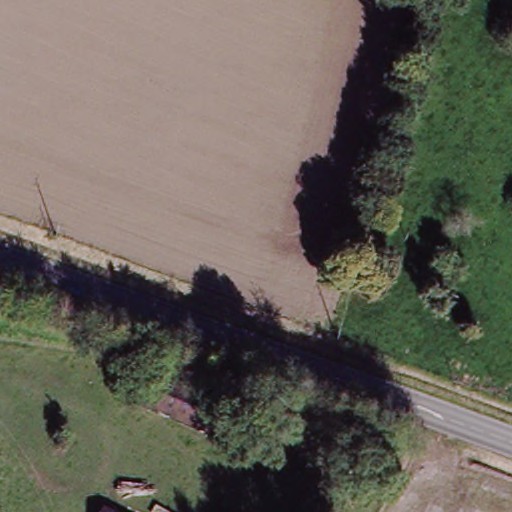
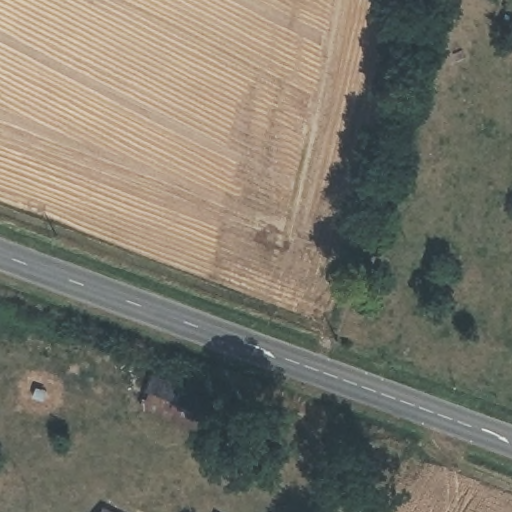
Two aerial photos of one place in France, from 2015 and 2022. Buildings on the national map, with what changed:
unchanged [(157,378),(227,411),(215,437),(145,404),(157,378)]
unchanged [(135,512),(101,512),(108,497),(135,512)]

